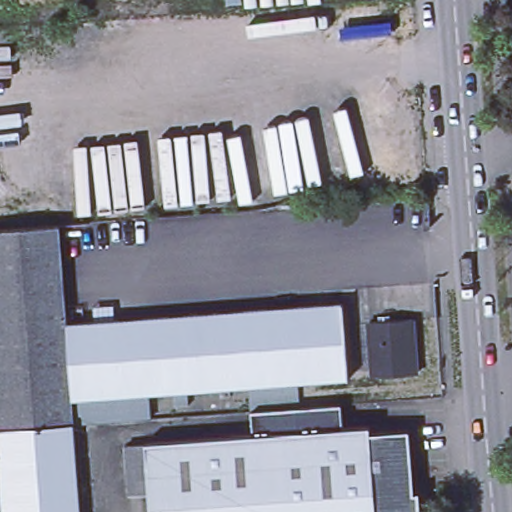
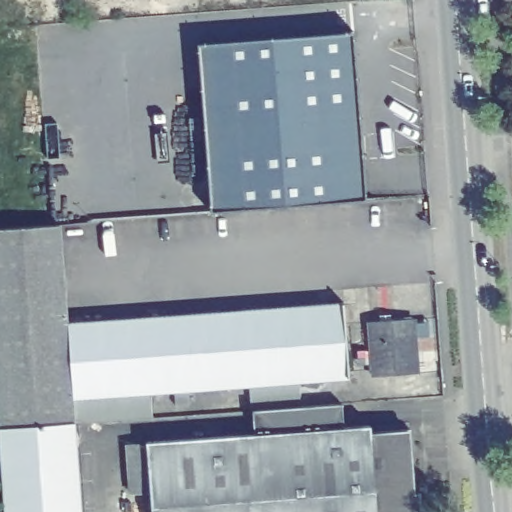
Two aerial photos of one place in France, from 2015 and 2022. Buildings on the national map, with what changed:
new [(366,198),(211,210),(197,42),(353,31),(366,198)]
unchanged [(0,419),(0,230),(66,225),(72,320),(347,303),(355,380),(302,386),(302,400),(253,404),(249,388),(154,392),(155,418),(79,424),(86,512),(5,512),(0,419)]
unchanged [(420,317),(426,374),(374,379),(370,322),(420,317)]
unchanged [(154,477),(129,480),(130,444),(150,443),(253,435),(254,412),(345,404),(347,430),(374,427),(375,435),(412,432),(421,512),(156,512),(154,477)]

